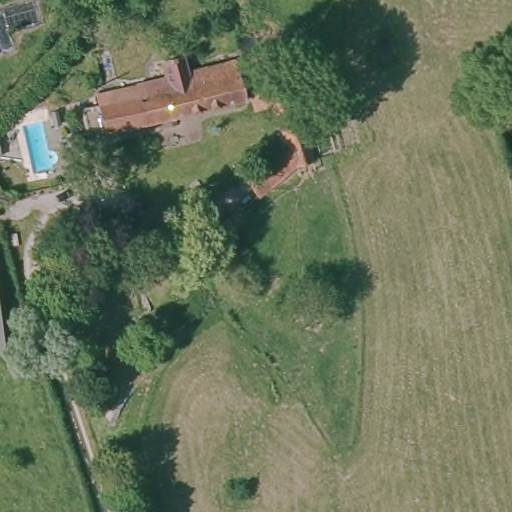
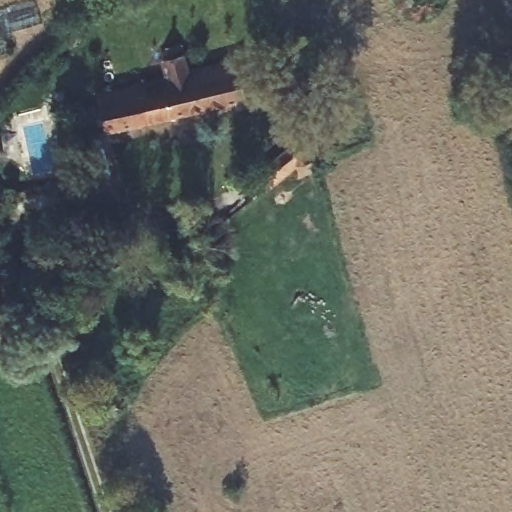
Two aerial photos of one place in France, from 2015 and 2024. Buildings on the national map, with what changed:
unchanged [(243,105),(108,141),(97,100),(121,93),(167,80),(163,64),(168,62),(166,50),(179,47),(182,60),(186,75),(232,63),(240,95),(243,105)]
unchanged [(256,86),(288,78),(311,160),(296,165),(292,167),(267,189),(258,177),(292,150),(275,91),(253,96),(251,87),(256,86)]
unchanged [(3,345),(0,346),(0,321),(3,345)]

